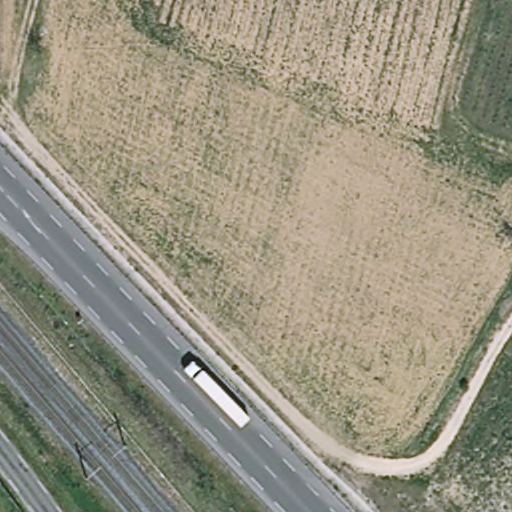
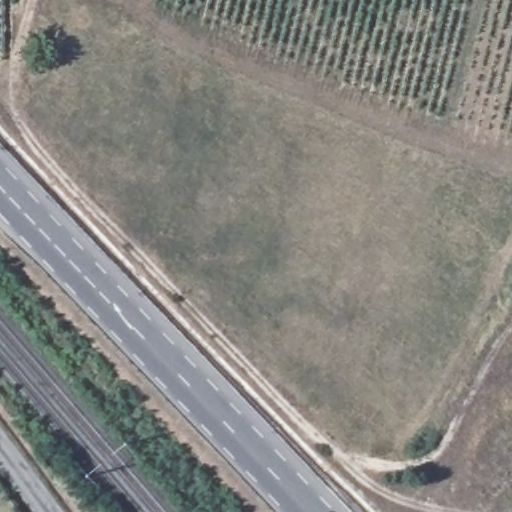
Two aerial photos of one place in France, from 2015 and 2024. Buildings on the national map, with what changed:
[]

